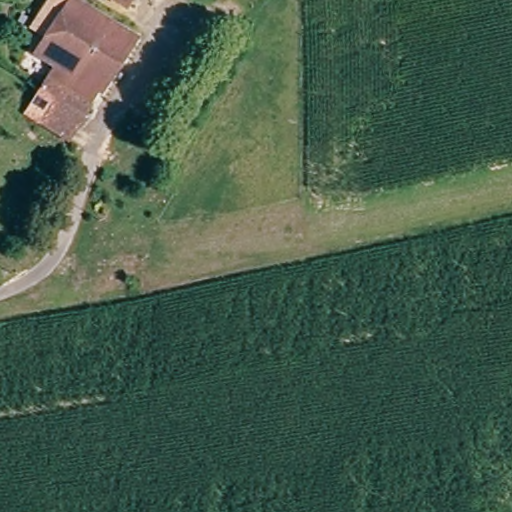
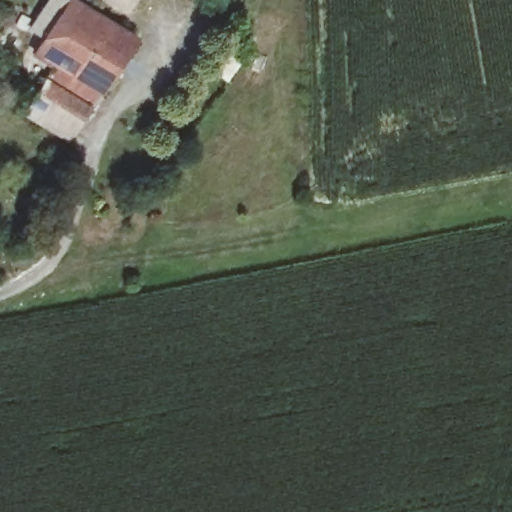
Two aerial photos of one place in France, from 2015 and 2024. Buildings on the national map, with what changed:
unchanged [(24,85),(29,76),(41,56),(22,44),(49,0),(81,0),(120,25),(66,113),(56,129),(21,106),(13,102),(24,85)]

